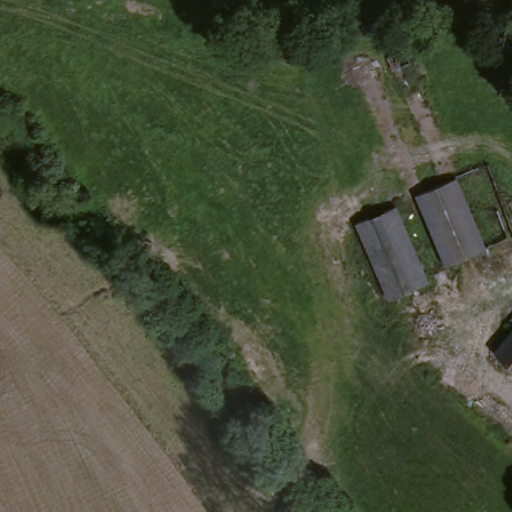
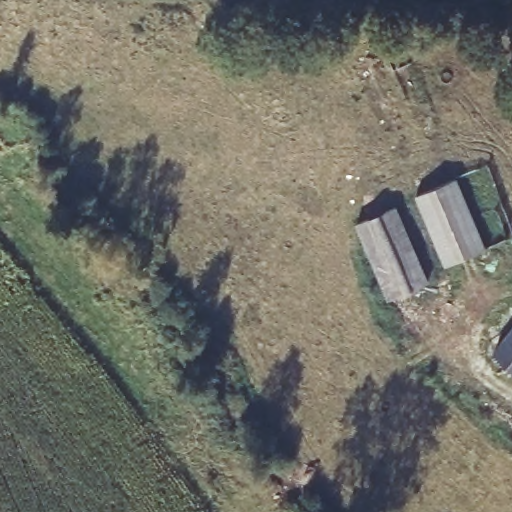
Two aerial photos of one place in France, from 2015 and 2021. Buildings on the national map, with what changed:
unchanged [(488,244),(448,262),(420,190),(460,173),(488,244)]
unchanged [(437,278),(397,295),(364,219),(406,200),(437,278)]
unchanged [(512,326),(512,375),(507,379),(487,360),(512,326)]

